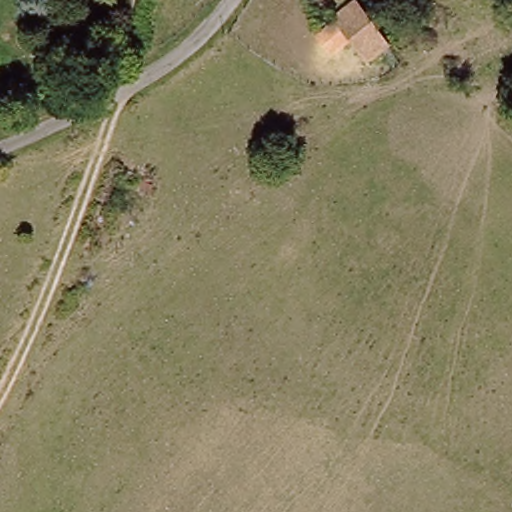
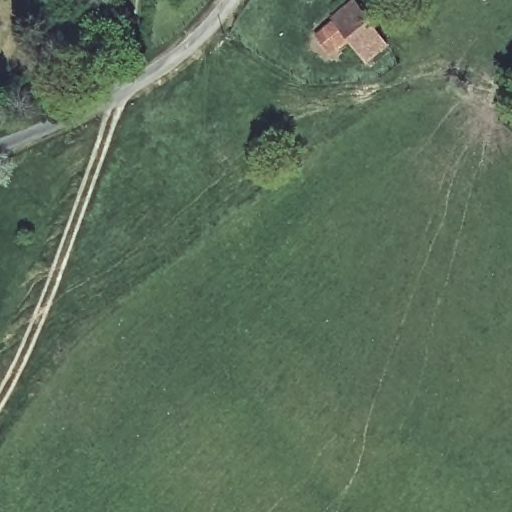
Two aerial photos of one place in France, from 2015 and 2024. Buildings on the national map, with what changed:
unchanged [(351,42),(331,55),(314,35),(331,22),(327,16),(349,0),(353,0),(388,45),(365,64),(351,42)]

